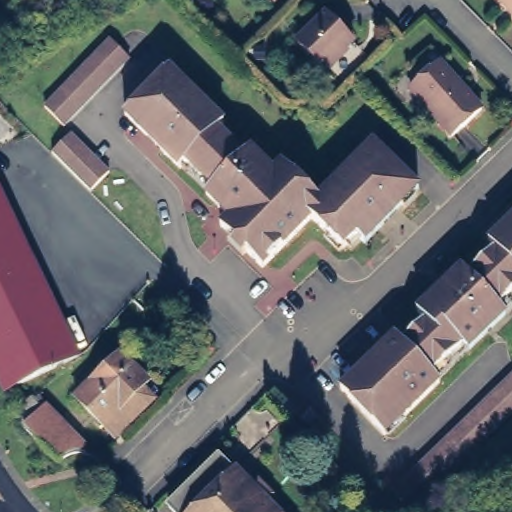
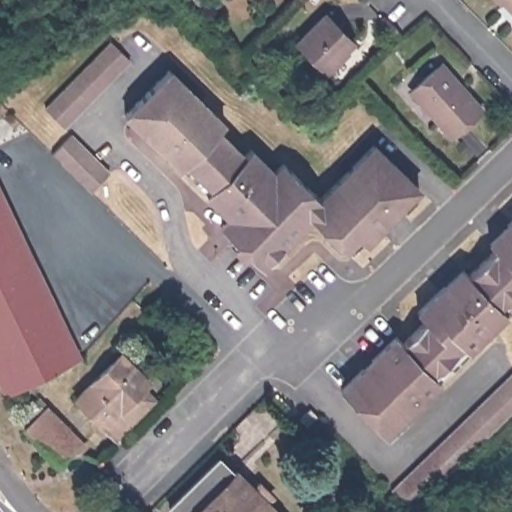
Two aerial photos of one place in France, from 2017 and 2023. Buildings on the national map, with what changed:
unchanged [(505,0),(512,0),(512,7),(505,0)]
unchanged [(298,36),(326,8),(353,37),(325,64),(298,36)]
unchanged [(46,102),(113,36),(132,53),(65,121),(46,102)]
unchanged [(360,237),(352,229),(338,242),(308,212),(258,260),(217,220),(225,212),(202,188),(210,181),(184,155),(176,163),(122,108),(167,63),(223,117),(216,124),(242,148),(248,142),(271,165),(280,156),(316,192),(371,137),(415,182),(360,237)]
unchanged [(410,88),(438,63),(459,87),(460,86),(480,108),(449,134),(410,88)]
unchanged [(72,133),(111,171),(92,191),(91,191),(54,152),(55,152),(72,133)]
unchanged [(10,395),(0,373),(0,181),(83,359),(10,395)]
unchanged [(395,334),(400,340),(423,319),(416,311),(462,266),(469,272),(495,248),(489,241),(512,220),(512,293),(500,305),(505,311),(466,350),(461,345),(431,374),(436,379),(381,433),(340,388),(395,334)]
unchanged [(112,438),(101,426),(73,396),(120,353),(147,382),(143,385),(154,397),(112,438)]
unchanged [(512,371),(512,408),(415,500),(411,504),(393,485),(397,482),(512,371)]
unchanged [(68,457),(60,463),(30,429),(20,410),(36,396),(38,400),(42,397),(85,443),(75,455),(68,457)]
unchanged [(297,413),(307,403),(315,410),(304,420),(297,413)]
unchanged [(221,455),(237,472),(238,471),(256,489),(262,484),(273,496),(268,501),(278,512),(175,512),(170,506),(221,455)]

